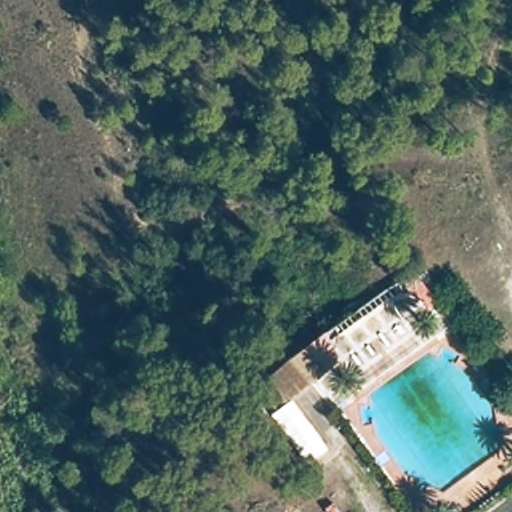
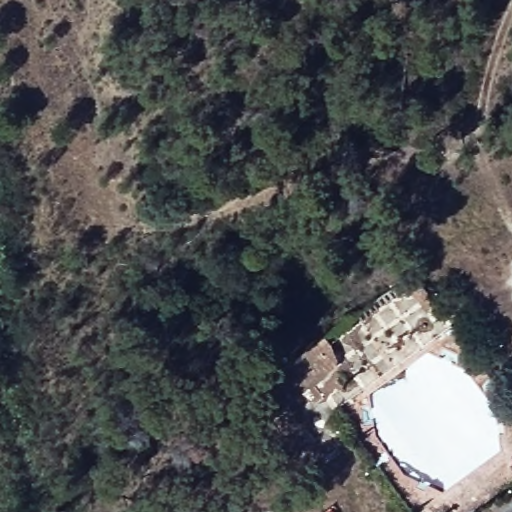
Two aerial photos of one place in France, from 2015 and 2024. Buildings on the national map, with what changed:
unchanged [(422,305),(409,284),(333,337),(343,354),(274,411),(250,381),(412,263),(437,297),(422,305)]

